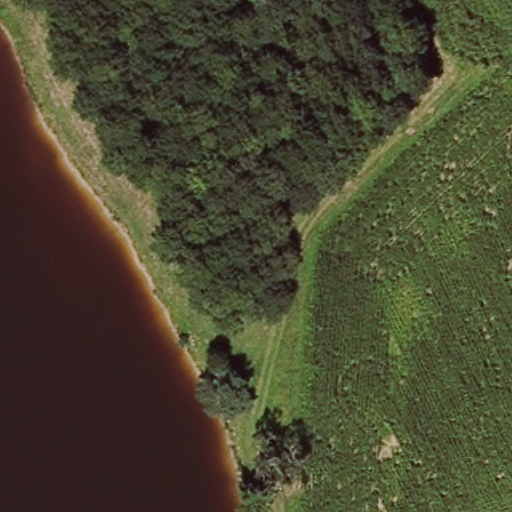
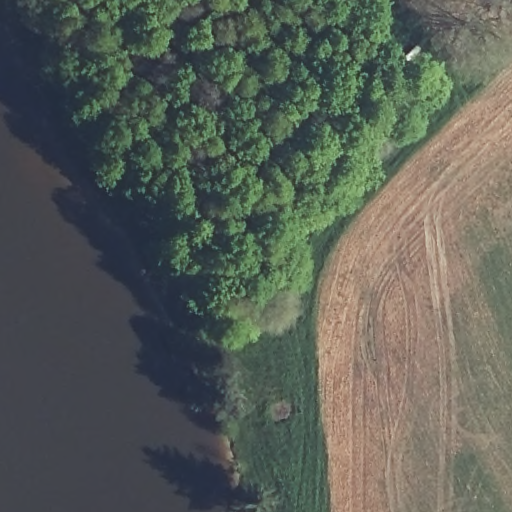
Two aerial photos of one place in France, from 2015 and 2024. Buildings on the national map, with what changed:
[]

